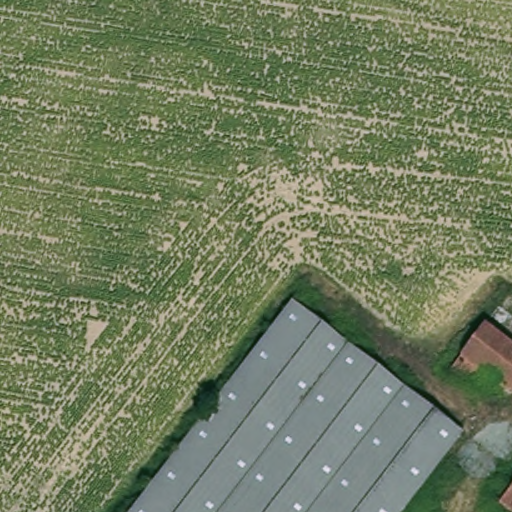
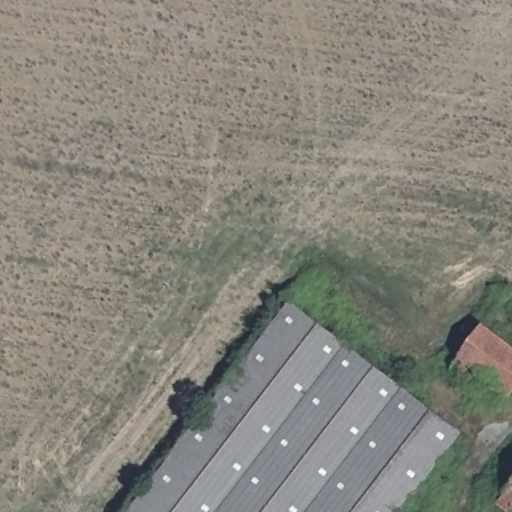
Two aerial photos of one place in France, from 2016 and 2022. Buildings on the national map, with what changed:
unchanged [(418,400),(337,512),(128,512),(286,302),(418,400)]
unchanged [(512,372),(500,365),(483,392),(452,373),(485,326),(512,345),(512,372)]
unchanged [(459,430),(395,512),(337,512),(418,400),(459,430)]
unchanged [(512,491),(512,506),(505,500),(512,491)]

